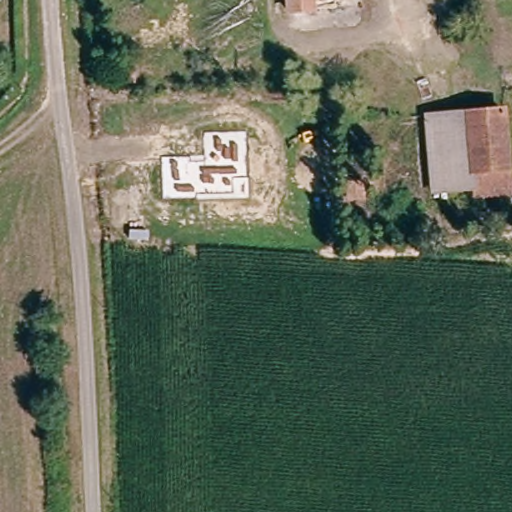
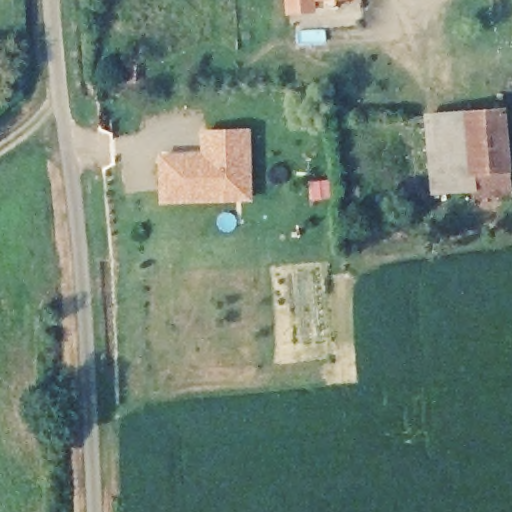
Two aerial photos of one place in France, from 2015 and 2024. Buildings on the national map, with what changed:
unchanged [(475,194),(475,186),(434,186),(431,110),(503,109),(508,191),(475,194)]
new [(251,129),(254,201),(160,205),(159,154),(201,152),(200,130),(251,129)]

